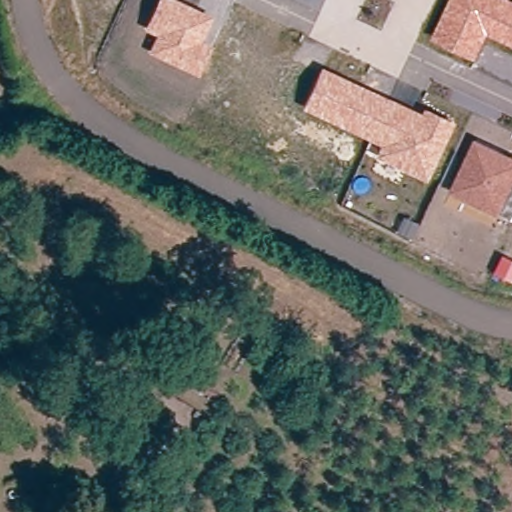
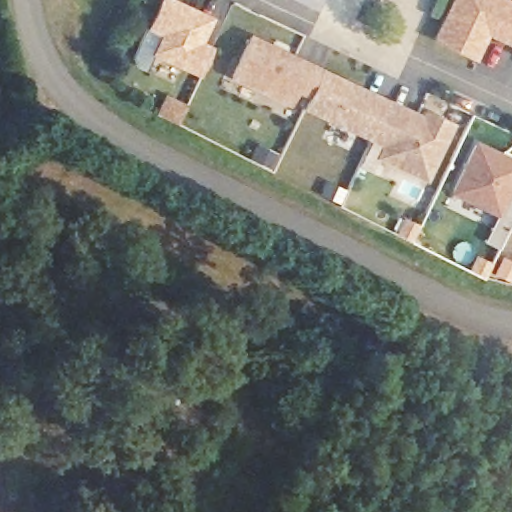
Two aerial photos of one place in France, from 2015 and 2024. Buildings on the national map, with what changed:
unchanged [(202,41),(213,45),(200,77),(149,53),(155,36),(144,29),(158,0),(179,0),(213,18),(202,41)]
unchanged [(488,35),(475,61),(431,39),(450,0),(512,0),(512,46),(488,35)]
new [(307,99),(298,94),(290,106),(227,78),(250,31),(322,67),(307,99)]
unchanged [(421,114),(423,109),(454,124),(427,181),(377,156),(382,145),(303,109),(322,67),(421,114)]
unchanged [(512,157),(512,221),(449,193),(474,139),(512,157)]

